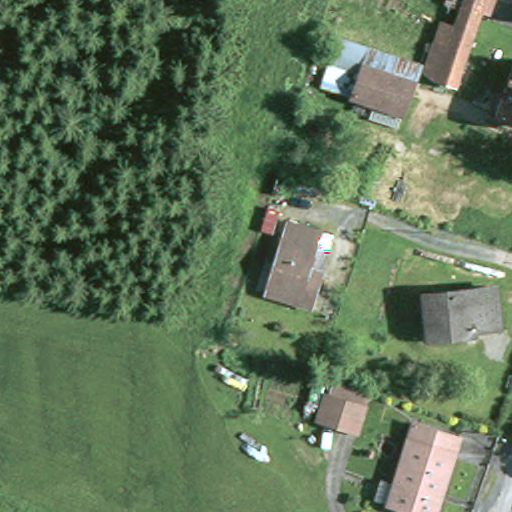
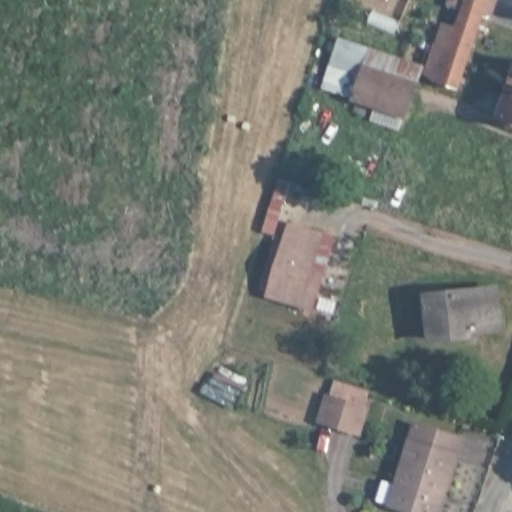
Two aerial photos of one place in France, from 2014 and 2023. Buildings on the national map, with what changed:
unchanged [(454,51),(467,11),(471,0),(491,0),(486,17),(473,57),(463,87),(445,80),(454,51)]
unchanged [(424,82),(414,114),(367,98),(378,67),(424,82)]
unchanged [(512,86),(512,117),(502,113),(512,86)]
unchanged [(314,271),(327,276),(316,307),(269,291),(293,219),(328,232),(314,271)]
unchanged [(497,288),(502,324),(479,327),(480,334),(435,339),(430,295),(497,288)]
unchanged [(393,426),(385,453),(351,442),(360,415),(393,426)]
unchanged [(400,479),(420,421),(465,435),(440,512),(420,512),(392,503),(380,499),(387,475),(400,479)]

